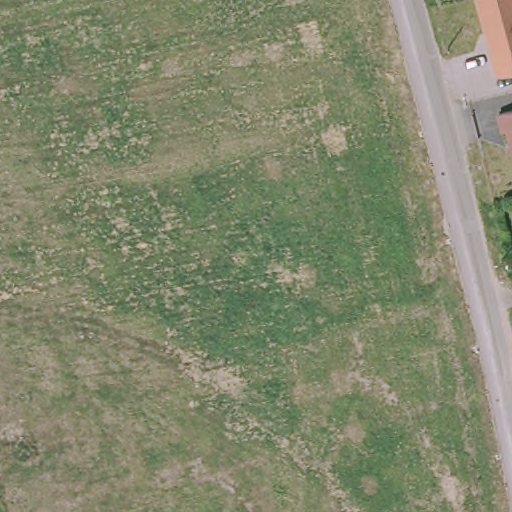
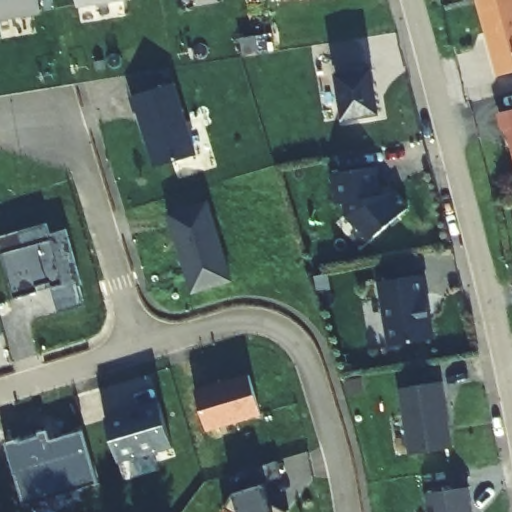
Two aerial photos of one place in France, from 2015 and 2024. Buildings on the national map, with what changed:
new [(0,20),(0,0),(37,0),(40,14),(0,20)]
new [(77,0),(128,0),(78,8),(77,0)]
unchanged [(473,0),(512,0),(512,74),(495,78),(473,0)]
new [(342,122),(335,74),(374,67),(382,115),(342,122)]
new [(131,96),(176,83),(198,155),(153,168),(131,96)]
unchanged [(496,133),(492,114),(512,108),(512,167),(503,131),(496,133)]
new [(380,194),(393,192),(407,207),(370,240),(340,205),(330,175),(377,167),(380,194)]
new [(168,215),(210,201),(233,281),(192,293),(168,215)]
new [(47,225),(50,235),(66,230),(82,284),(78,285),(85,304),(60,311),(52,287),(15,298),(0,249),(0,237),(47,225)]
new [(435,337),(387,345),(376,283),(425,274),(435,337)]
new [(248,372),(258,412),(205,427),(195,389),(248,372)]
new [(442,382),(452,446),(407,454),(397,389),(442,382)]
new [(159,401),(169,443),(117,456),(105,416),(159,401)]
new [(15,441),(19,445),(39,437),(38,434),(46,431),(50,442),(82,432),(96,483),(24,503),(5,444),(15,441)]
new [(267,500),(288,509),(287,512),(238,512),(239,510),(223,505),(231,488),(265,481),(267,500)]
new [(468,487),(472,512),(427,512),(425,496),(468,487)]

